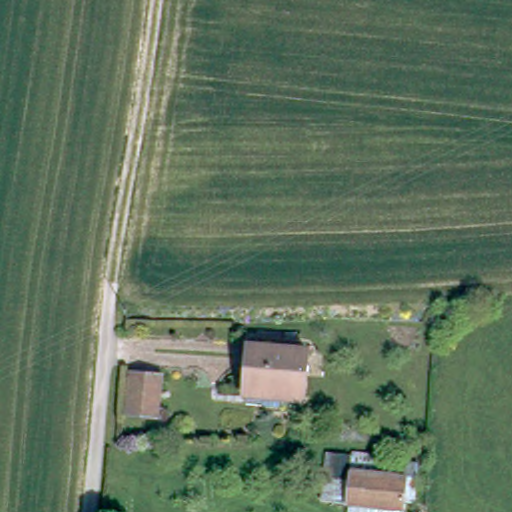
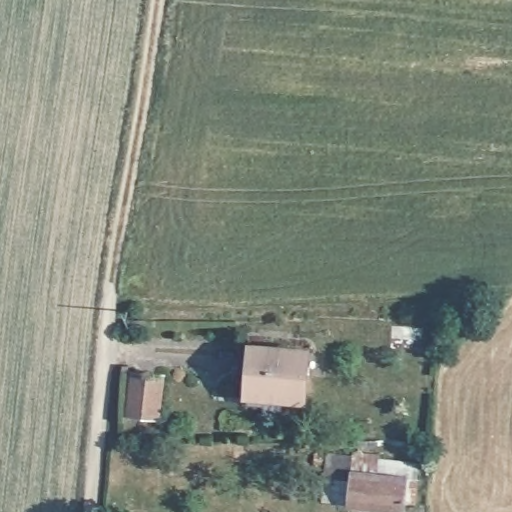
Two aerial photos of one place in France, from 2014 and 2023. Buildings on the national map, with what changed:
unchanged [(280,396),(280,390),(247,387),(250,343),(301,347),(307,348),(302,397),(297,397),(280,396)]
unchanged [(156,412),(126,410),(130,370),(160,373),(156,412)]
unchanged [(116,456),(116,453),(118,445),(128,447),(127,453),(126,457),(116,456)]
unchanged [(326,511),(327,502),(330,477),(331,462),(340,462),(355,464),(421,472),(418,510),(408,509),(408,512),(340,512),(326,511)]

